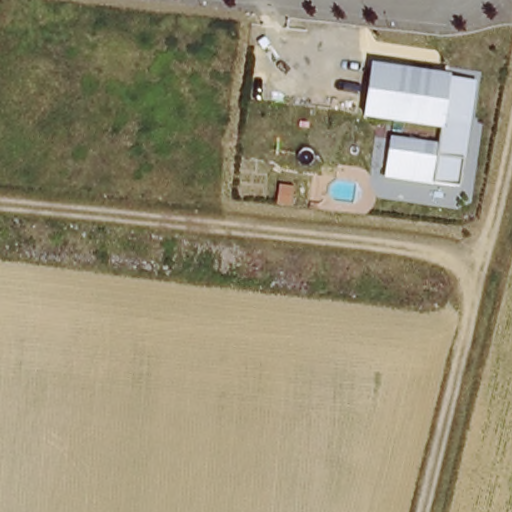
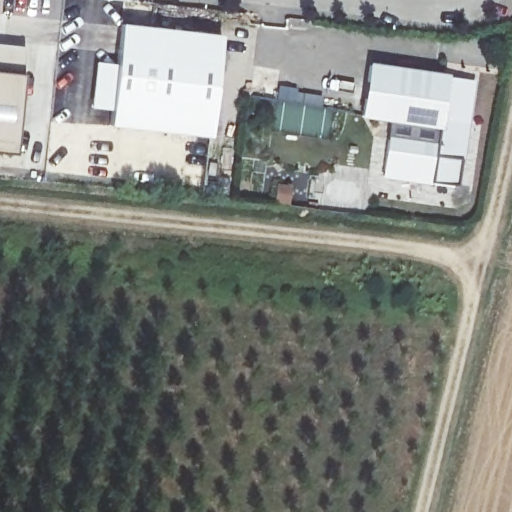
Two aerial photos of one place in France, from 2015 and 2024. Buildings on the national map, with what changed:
new [(115,65),(120,23),(220,36),(207,137),(107,123),(109,105),(90,103),(96,63),(115,65)]
new [(26,46),(21,74),(13,152),(0,151),(0,43),(26,46)]
unchanged [(477,78),(460,185),(384,174),(391,136),(437,143),(440,129),(362,117),(371,61),(477,78)]
new [(324,136),(278,130),(281,101),(276,101),(279,85),(324,94),(322,105),(327,106),(324,136)]

